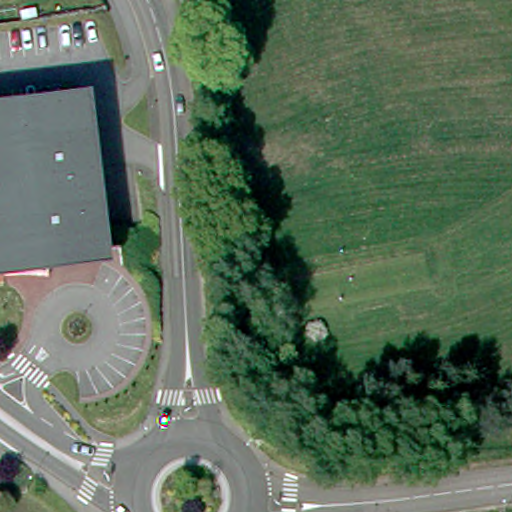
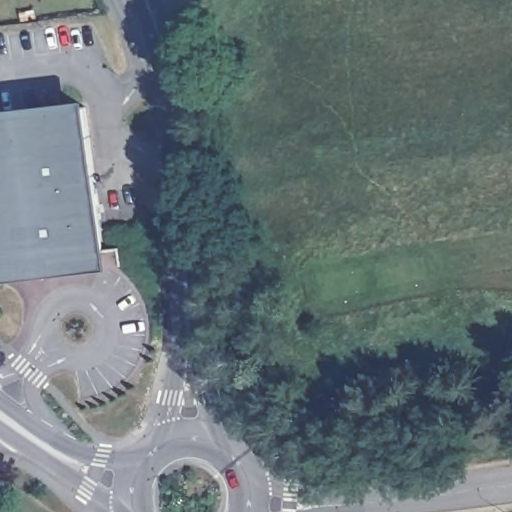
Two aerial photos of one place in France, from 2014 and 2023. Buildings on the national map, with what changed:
unchanged [(95,97),(114,266),(0,279),(0,109),(95,97)]

